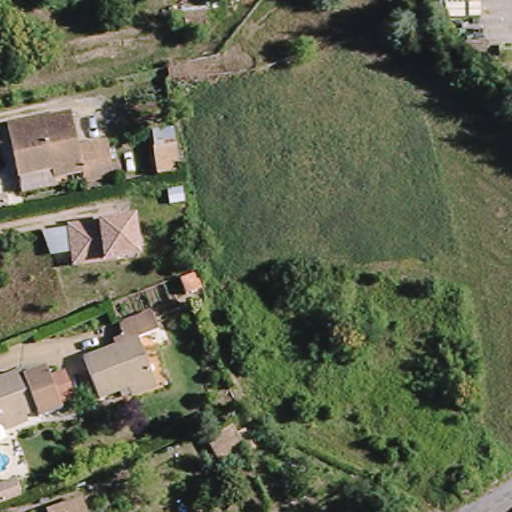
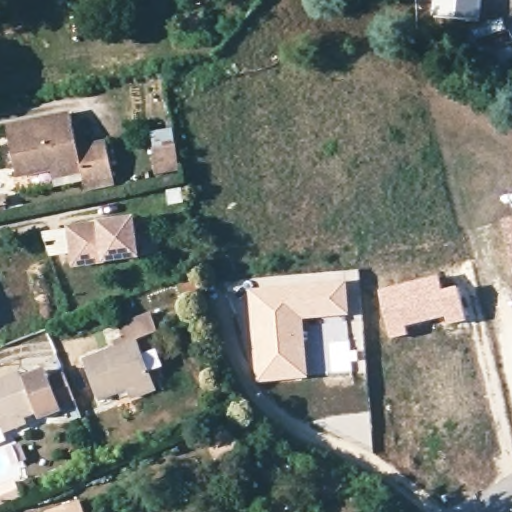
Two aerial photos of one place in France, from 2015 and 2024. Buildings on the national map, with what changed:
new [(479,21),(433,17),(435,0),(482,0),(479,21)]
unchanged [(208,21),(209,36),(190,36),(188,21),(208,21)]
unchanged [(53,168),(22,175),(11,130),(72,116),(80,147),(107,142),(114,178),(87,184),(84,169),(67,172),(55,175),(53,168)]
unchanged [(180,146),(184,179),(155,181),(150,148),(180,146)]
unchanged [(137,218),(139,262),(68,271),(64,227),(137,218)]
new [(512,266),(502,220),(512,218),(512,266)]
new [(439,275),(442,289),(458,285),(466,321),(445,325),(444,320),(407,328),(409,335),(390,340),(377,290),(439,275)]
new [(347,280),(350,317),(304,321),(308,379),(255,384),(246,288),(347,280)]
unchanged [(106,402),(89,361),(121,349),(129,344),(125,333),(120,325),(153,311),(162,332),(143,339),(160,380),(165,392),(139,403),(134,391),(106,402)]
unchanged [(5,435),(0,426),(0,379),(17,371),(20,377),(42,368),(45,374),(59,370),(68,398),(57,403),(60,409),(38,416),(36,411),(22,416),(27,425),(5,435)]
unchanged [(223,437),(247,426),(258,451),(232,460),(223,437)]
unchanged [(468,476),(478,498),(463,505),(453,481),(468,476)]
unchanged [(30,502),(4,512),(0,512),(0,488),(20,481),(30,502)]
unchanged [(91,497),(100,495),(105,512),(48,512),(47,510),(91,497)]

